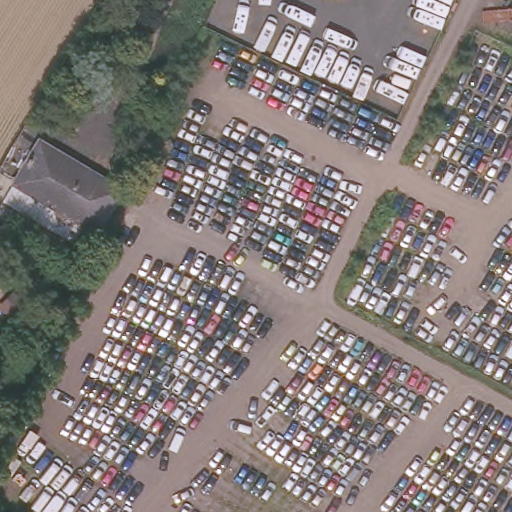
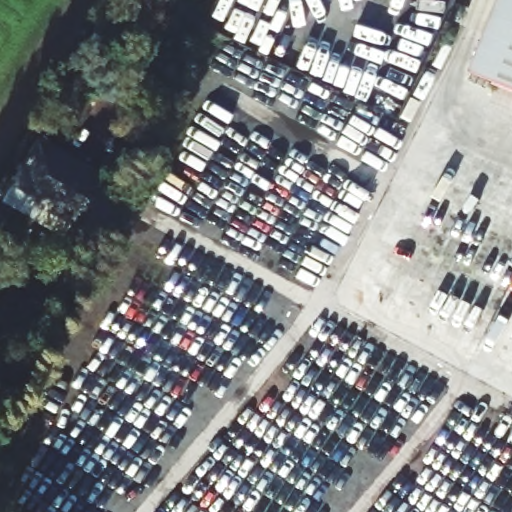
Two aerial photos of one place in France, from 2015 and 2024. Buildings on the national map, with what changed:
new [(495,0),(512,0),(512,93),(468,75),(495,0)]
unchanged [(124,186),(102,225),(91,218),(81,233),(67,225),(75,209),(50,195),(40,212),(18,199),(14,185),(42,137),(124,186)]
unchanged [(1,226),(0,229),(0,226),(1,226)]
unchanged [(82,276),(78,284),(49,268),(54,260),(82,276)]

